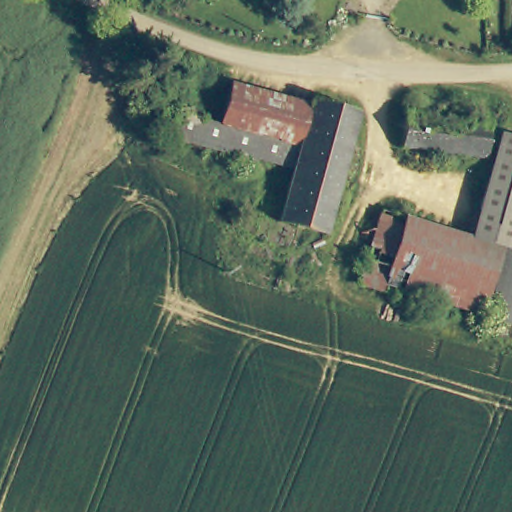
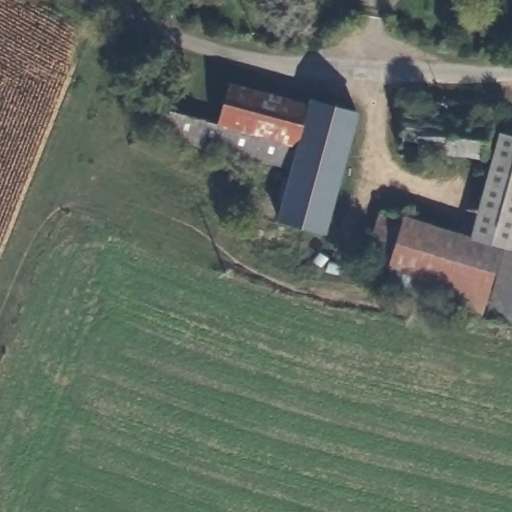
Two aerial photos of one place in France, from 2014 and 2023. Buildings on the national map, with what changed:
unchanged [(219,1),(218,0),(219,0),(219,1)]
unchanged [(310,101),(299,142),(201,116),(213,73),(310,101)]
unchanged [(311,97),(358,109),(328,230),(281,217),(294,169),(156,132),(163,107),(201,116),(299,142),(310,101),(311,97)]
unchanged [(488,117),(482,153),(398,138),(403,103),(488,117)]
unchanged [(473,232),(499,131),(512,134),(512,220),(506,242),(501,241),(473,232)]
unchanged [(383,287),(356,279),(378,204),(404,212),(385,281),(383,287)]
unchanged [(501,241),(480,308),(385,281),(404,212),(473,232),(501,241)]
unchanged [(487,312),(506,242),(512,220),(512,320),(487,312)]

